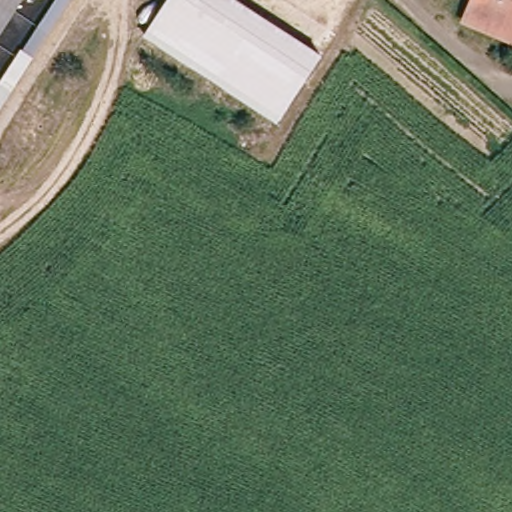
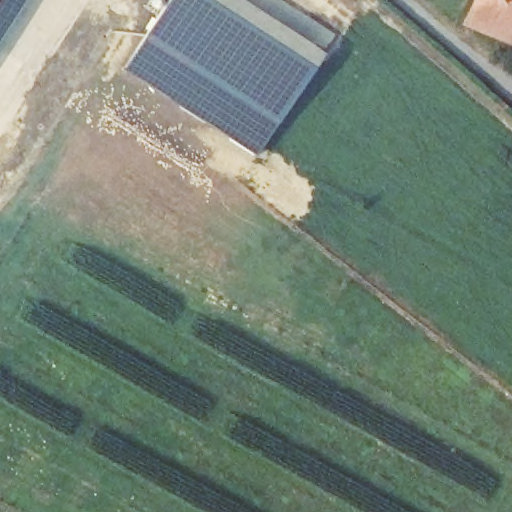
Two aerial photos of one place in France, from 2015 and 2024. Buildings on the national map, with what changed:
unchanged [(24,0),(0,35),(0,0),(24,0)]
demolished [(30,51),(63,0),(78,0),(0,122),(0,91),(26,50),(30,51)]
unchanged [(163,0),(236,0),(320,55),(277,123),(145,36),(165,1),(163,0)]
unchanged [(470,23),(478,0),(512,0),(512,28),(508,38),(470,23)]
unchanged [(512,28),(512,39),(508,38),(512,28)]
new [(254,156),(122,70),(145,36),(277,123),(254,156)]

